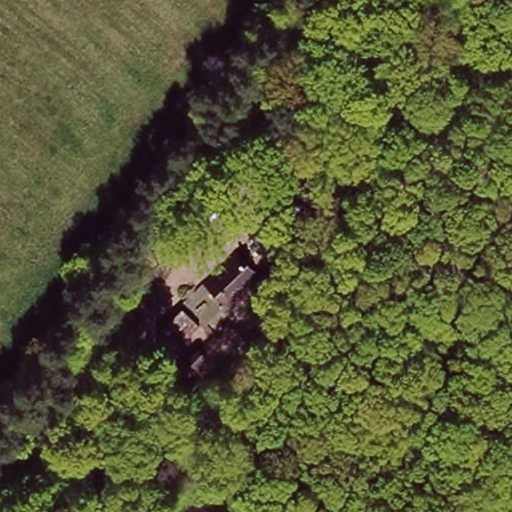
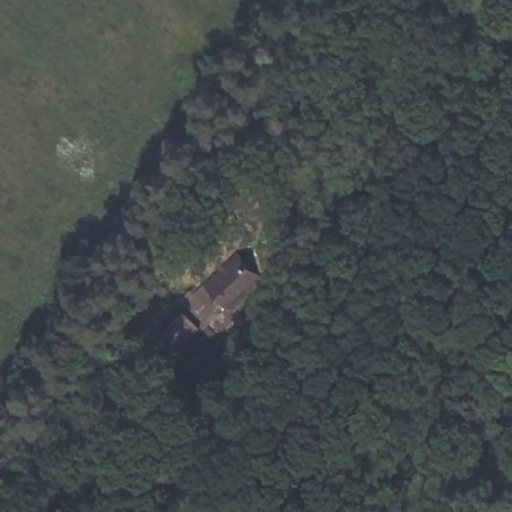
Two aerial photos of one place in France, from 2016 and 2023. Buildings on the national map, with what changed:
unchanged [(246,262),(266,283),(241,308),(219,287),(246,262)]

